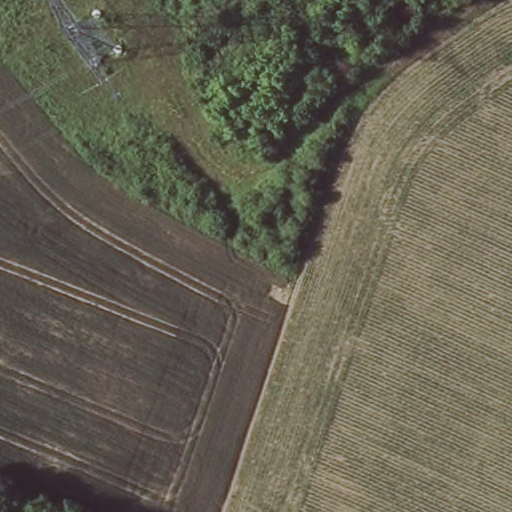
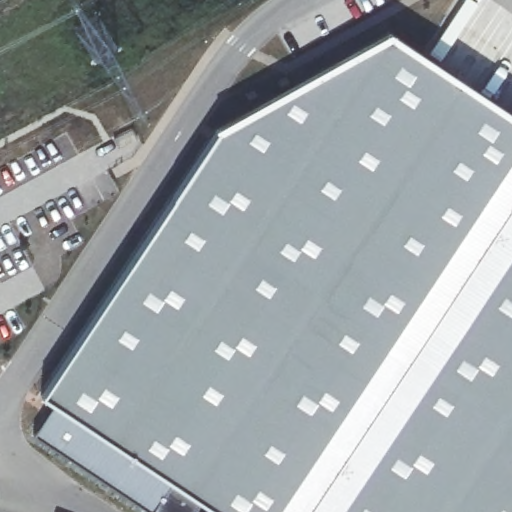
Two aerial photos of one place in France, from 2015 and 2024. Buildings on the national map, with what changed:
new [(36,437),(58,407),(42,396),(216,132),(215,127),(390,32),(512,114),(512,512),(151,512),(36,437)]

